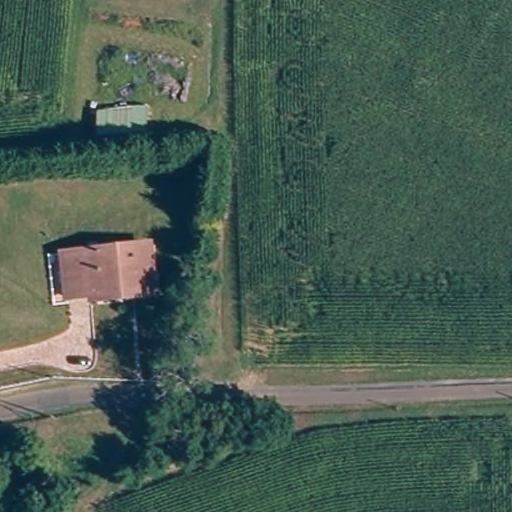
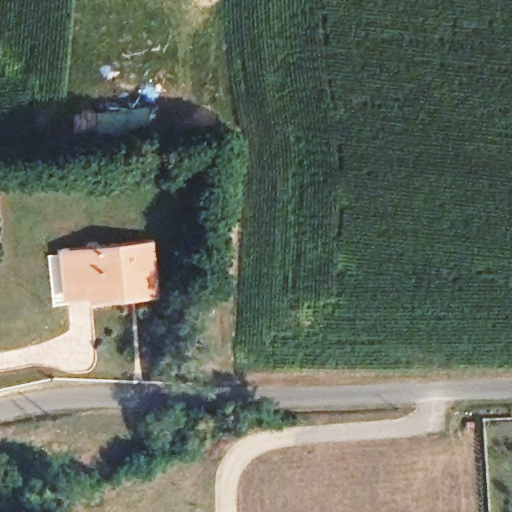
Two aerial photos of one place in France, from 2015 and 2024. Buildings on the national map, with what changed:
unchanged [(95,297),(72,301),(66,258),(151,247),(159,295),(140,297),(96,304),(95,297)]

